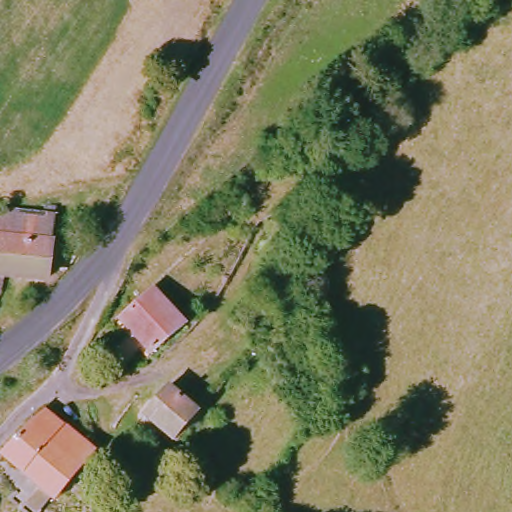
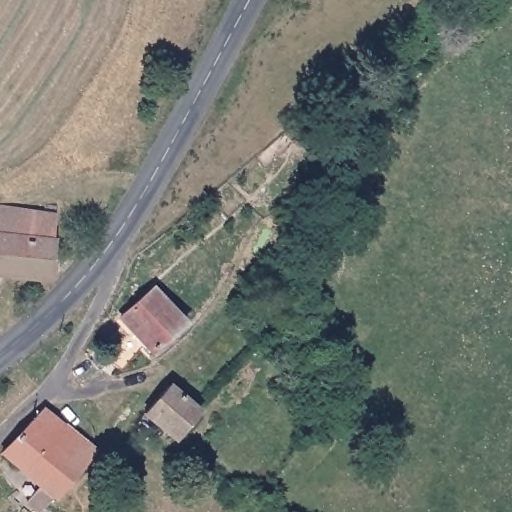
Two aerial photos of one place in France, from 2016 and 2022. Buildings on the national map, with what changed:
unchanged [(0,280),(0,209),(41,214),(43,207),(52,207),(41,283),(1,280),(0,280)]
unchanged [(180,323),(149,351),(143,344),(121,366),(110,354),(135,328),(123,315),(151,290),(180,323)]
unchanged [(191,415),(169,441),(138,415),(164,387),(191,415)]
unchanged [(5,502),(0,500),(0,496),(21,481),(0,461),(0,448),(39,406),(88,447),(39,510),(36,512),(16,512),(5,502)]

